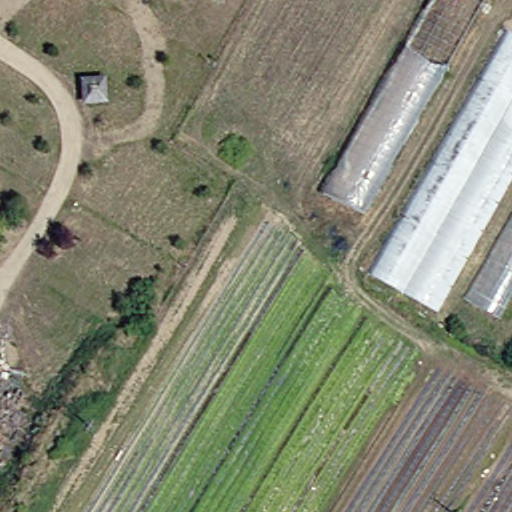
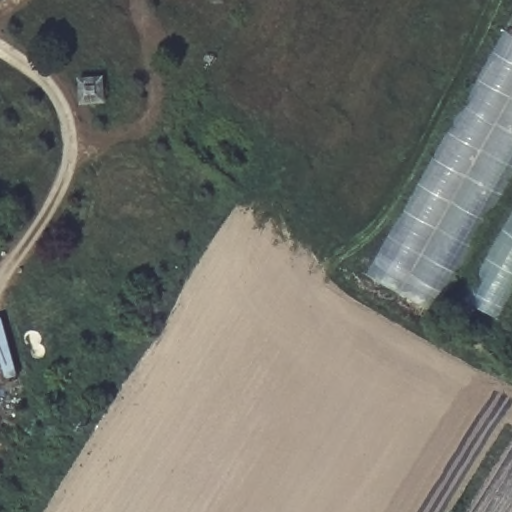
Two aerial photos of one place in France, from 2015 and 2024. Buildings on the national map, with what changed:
demolished [(316,196),(424,0),(483,0),(359,215),(316,196)]
unchanged [(355,282),(501,27),(512,34),(512,165),(427,320),(355,282)]
unchanged [(512,198),(512,270),(487,317),(455,303),(512,198)]

